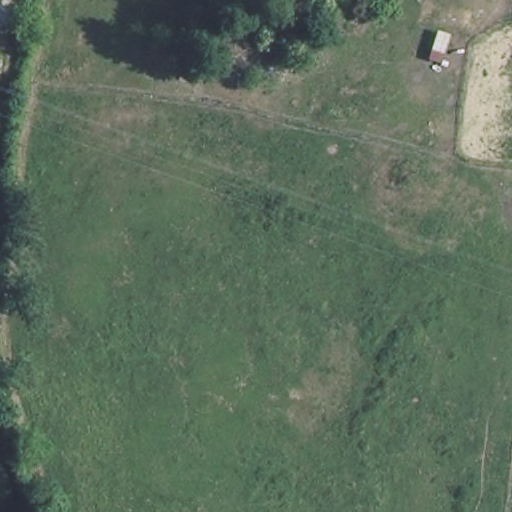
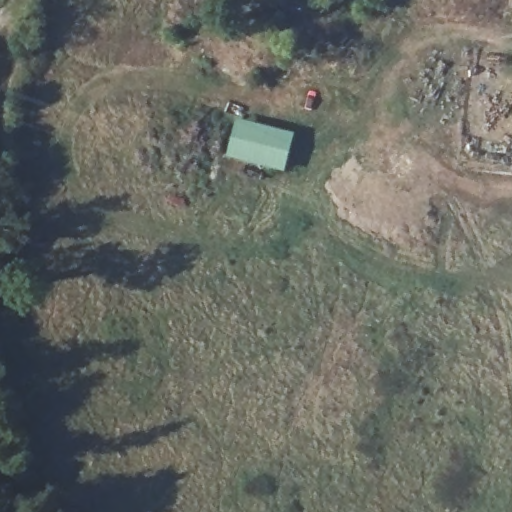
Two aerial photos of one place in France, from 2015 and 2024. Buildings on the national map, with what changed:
new [(295,132),(284,171),(226,156),(236,118),(295,132)]

